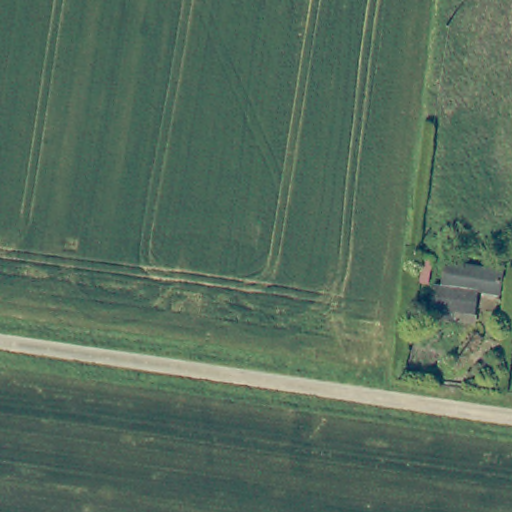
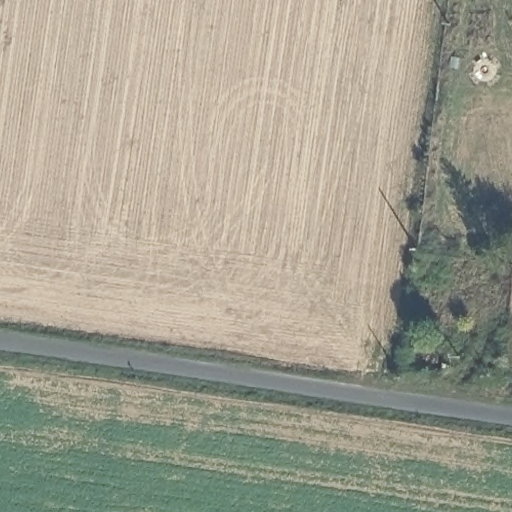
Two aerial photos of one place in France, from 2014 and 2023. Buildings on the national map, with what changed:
demolished [(437,260),(434,282),(418,280),(421,258),(437,260)]
demolished [(441,285),(446,285),(449,267),(452,267),(453,260),(509,268),(506,290),(480,286),(477,308),(459,306),(458,316),(437,314),(441,285)]

